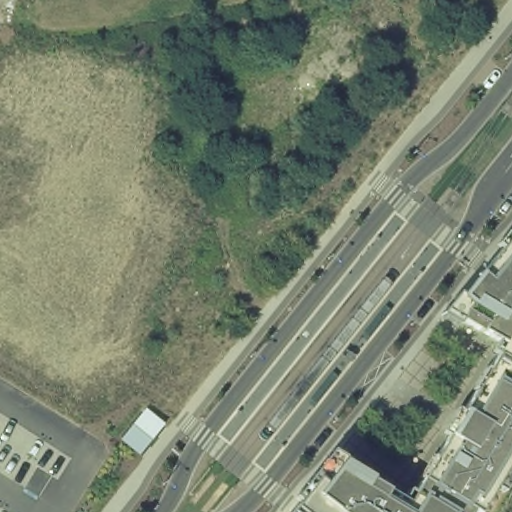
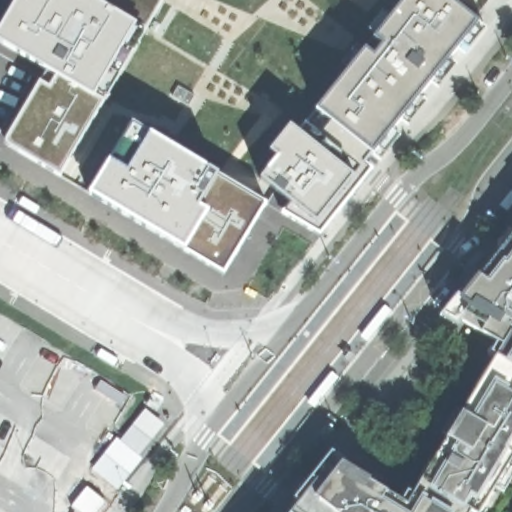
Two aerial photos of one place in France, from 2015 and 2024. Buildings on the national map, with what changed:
new [(101,102),(59,175),(5,143),(37,82),(46,88),(54,74),(0,43),(0,26),(14,0),(91,0),(129,24),(89,95),(101,102)]
new [(306,123),(311,127),(322,114),(316,109),(403,0),(451,0),(487,28),(465,54),(458,49),(450,59),(457,65),(438,88),(431,83),(420,96),(427,102),(408,126),(401,120),(396,127),(394,130),(401,135),(380,161),(372,154),(366,163),(373,169),(325,230),(321,236),(282,213),(290,202),(260,179),(306,123)]
new [(178,85),(195,95),(189,105),(172,95),(178,85)]
new [(109,162),(107,162),(132,122),(194,159),(193,160),(266,204),(224,274),(90,194),(109,162)]
demolished [(342,459),(387,487),(405,497),(447,439),(465,414),(505,341),(442,311),(510,229),(512,227),(512,470),(502,486),(492,482),(470,512),(289,512),(332,448),(342,459)]
new [(295,498),(332,451),(348,460),(345,466),(368,480),(372,475),(387,485),(385,490),(402,500),(408,490),(414,493),(422,480),(420,478),(432,457),(435,458),(475,391),(472,389),(485,369),(488,369),(496,356),(491,352),(497,342),(462,321),(457,326),(441,315),(457,294),(463,297),(501,250),(497,245),(509,230),(512,232),(512,478),(511,480),(502,476),(480,512),(472,512),(471,511),(471,512),(292,512),(299,503),(295,498)]
new [(117,438),(121,440),(146,409),(164,424),(139,455),(142,459),(117,490),(92,469),(117,438)]

